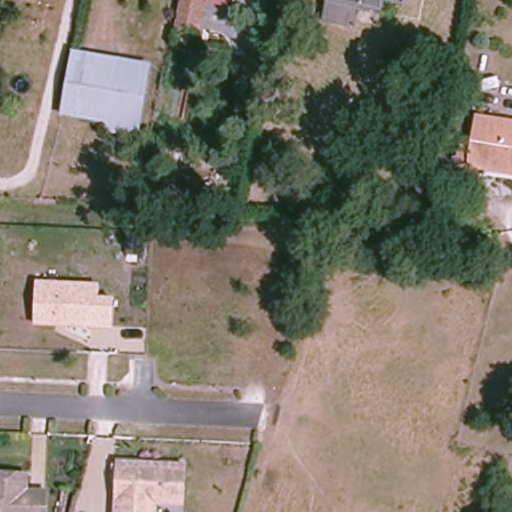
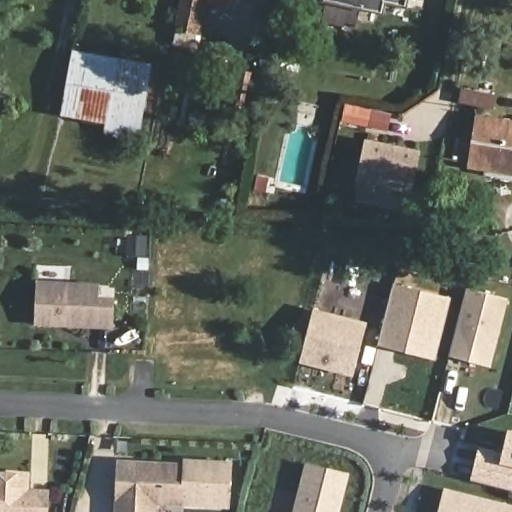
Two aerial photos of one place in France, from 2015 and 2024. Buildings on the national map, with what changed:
unchanged [(329,0),(409,0),(407,8),(386,4),(384,15),(360,11),(356,30),(324,24),(329,0)]
unchanged [(152,69),(138,126),(62,109),(75,51),(152,69)]
new [(463,89),(497,94),(495,109),(461,104),(463,89)]
unchanged [(476,118),(512,125),(512,175),(469,168),(476,118)]
unchanged [(192,158),(157,151),(163,119),(198,124),(192,158)]
new [(370,143),(420,153),(413,191),(362,180),(370,143)]
demolished [(151,189),(154,169),(165,170),(161,191),(151,189)]
unchanged [(33,324),(36,282),(98,284),(97,297),(114,298),(112,325),(33,324)]
new [(396,286),(450,300),(438,346),(435,359),(381,345),(387,323),(396,286)]
new [(467,289),(507,300),(490,368),(449,357),(467,289)]
new [(315,312),(368,326),(356,374),(303,361),(315,312)]
new [(512,464),(508,464),(512,443),(512,464)]
new [(183,463),(184,458),(232,461),(229,509),(181,506),(181,502),(183,463)]
unchanged [(181,502),(153,501),(153,512),(113,512),(116,459),(141,461),(154,462),(183,463),(181,502)]
new [(341,512),(298,512),(309,465),(350,476),(342,507),(341,510),(341,512)]
new [(512,472),(512,488),(474,481),(479,467),(512,472)]
unchanged [(24,475),(24,491),(44,492),(44,512),(0,512),(0,474),(24,475)]
new [(445,495),(512,505),(512,512),(441,512),(445,495)]

